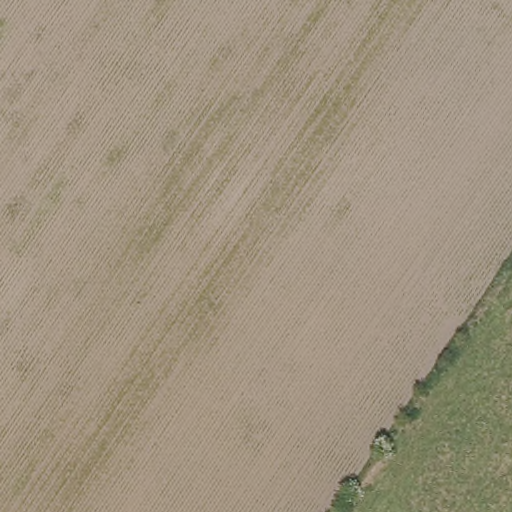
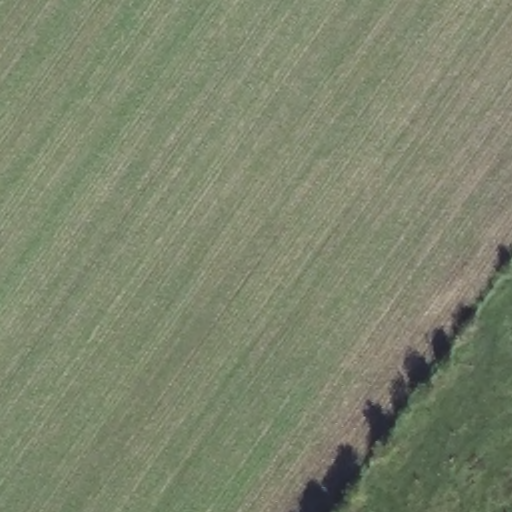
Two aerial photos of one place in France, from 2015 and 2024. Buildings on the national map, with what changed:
[]

